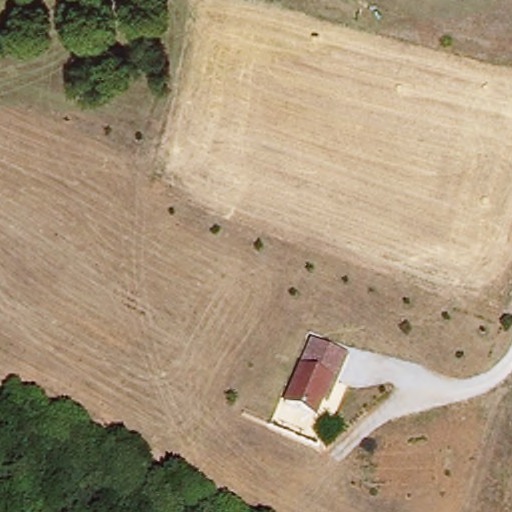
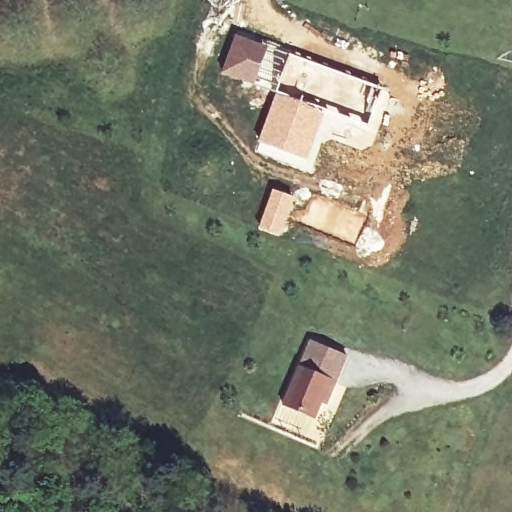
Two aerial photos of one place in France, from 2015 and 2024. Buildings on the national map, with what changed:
new [(371,118),(280,84),(275,93),(253,85),(220,73),(235,33),(270,46),(288,54),(383,88),(371,118)]
new [(307,161),(257,145),(275,93),(325,111),(307,161)]
new [(272,189),(295,198),(281,238),(257,229),(272,189)]
unchanged [(327,398),(319,416),(289,404),(315,338),(350,352),(340,379),(333,400),(327,398)]

